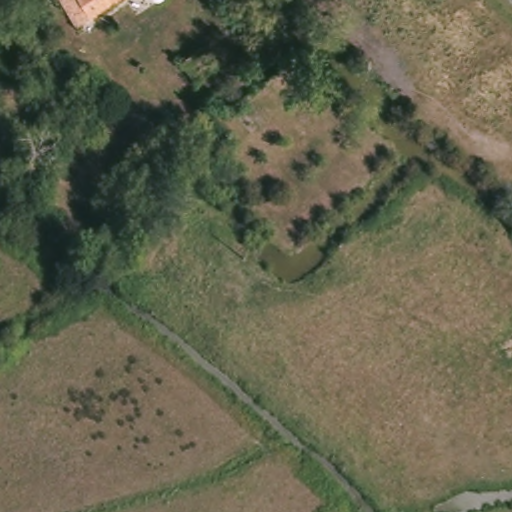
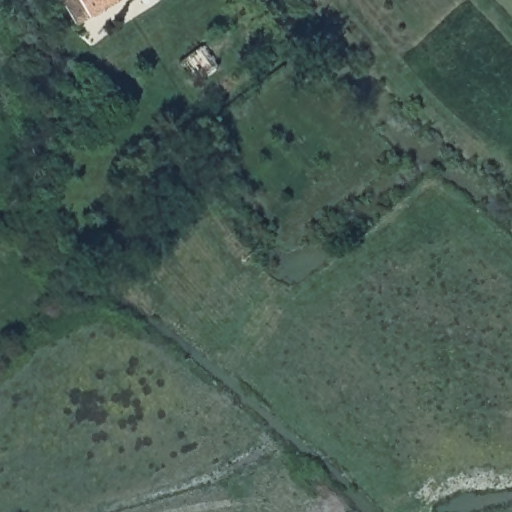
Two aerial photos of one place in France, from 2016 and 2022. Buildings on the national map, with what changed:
unchanged [(80,28),(62,0),(121,0),(80,28)]

